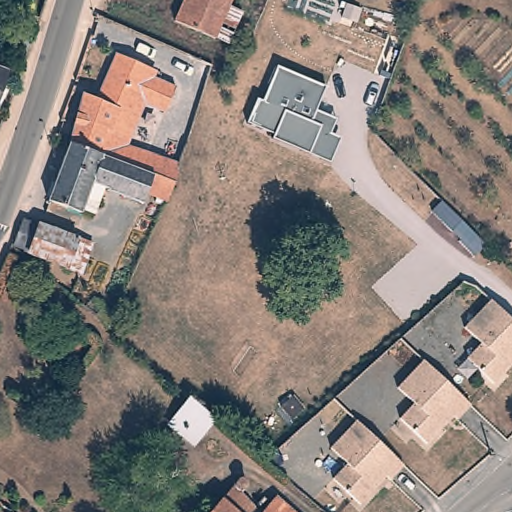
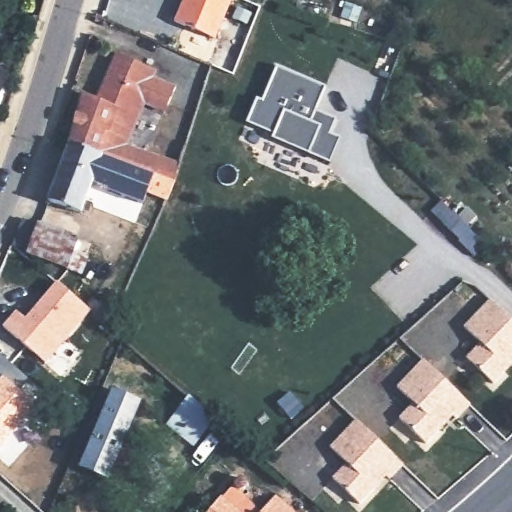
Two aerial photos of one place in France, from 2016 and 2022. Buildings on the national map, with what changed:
unchanged [(230,6),(243,12),(229,45),(175,22),(184,0),(232,0),(230,6)]
unchanged [(69,144),(83,94),(96,100),(98,101),(101,92),(100,92),(116,54),(151,70),(155,71),(152,78),(176,89),(168,107),(165,112),(144,103),(138,118),(126,147),(181,165),(175,185),(153,175),(69,144)]
demolished [(214,62),(207,82),(181,73),(189,54),(214,62)]
unchanged [(10,80),(11,82),(9,86),(6,87),(8,89),(4,100),(1,101),(0,101),(0,58),(13,63),(6,79),(10,80)]
unchanged [(330,134),(341,138),(331,162),(330,164),(272,139),(273,136),(246,124),(257,99),(262,101),(277,67),(326,87),(325,91),(318,106),(315,113),(325,117),(336,122),(330,134)]
unchanged [(81,211),(80,214),(48,201),(69,144),(153,175),(175,185),(167,202),(165,207),(163,207),(155,204),(157,197),(146,193),(143,204),(107,190),(108,189),(103,187),(96,203),(91,215),(81,211)]
unchanged [(447,207),(470,231),(462,239),(454,230),(452,231),(443,222),(446,220),(439,214),(447,207)]
unchanged [(96,258),(90,275),(76,270),(76,269),(38,255),(39,252),(23,247),(33,221),(49,227),(50,225),(88,240),(101,245),(96,258)]
new [(15,310),(25,318),(56,282),(91,311),(44,364),(1,327),(15,310)]
unchanged [(494,384),(467,358),(481,343),(464,328),(490,300),(512,321),(512,365),(509,368),(494,384)]
unchanged [(426,444),(400,418),(414,403),(397,388),(423,361),(470,405),(457,420),(453,416),(441,428),(426,444)]
new [(113,389),(143,401),(109,482),(77,470),(113,389)]
unchanged [(214,419),(194,446),(170,427),(169,426),(170,424),(190,398),(214,419)]
unchanged [(360,505),(333,479),(347,464),(330,448),(356,421),(403,466),(391,480),(386,477),(375,488),(360,505)]
unchanged [(164,431),(173,438),(156,460),(146,453),(164,431)]
unchanged [(240,483),(244,485),(245,485),(245,486),(246,487),(246,488),(246,490),(246,491),(245,492),(244,493),(241,498),(253,512),(215,512),(236,487),(240,483)]
unchanged [(286,512),(265,512),(275,502),(286,512)]

